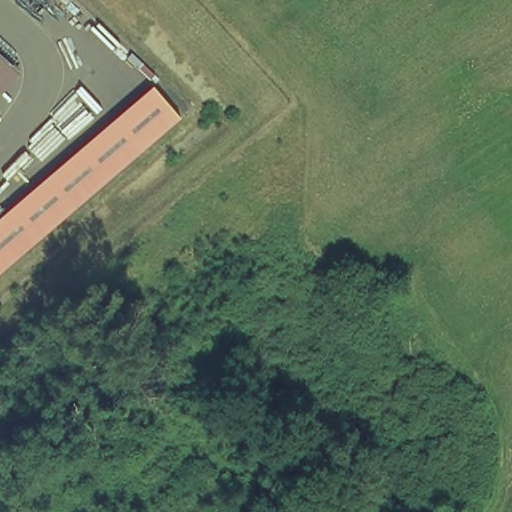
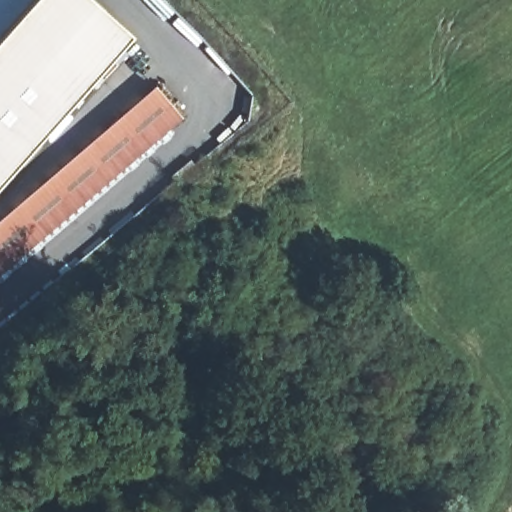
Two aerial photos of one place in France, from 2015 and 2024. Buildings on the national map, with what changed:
new [(0,55),(0,0),(84,0),(128,39),(0,181),(0,55)]
unchanged [(160,92),(174,107),(187,123),(152,152),(0,282),(0,228),(122,125),(160,92)]

